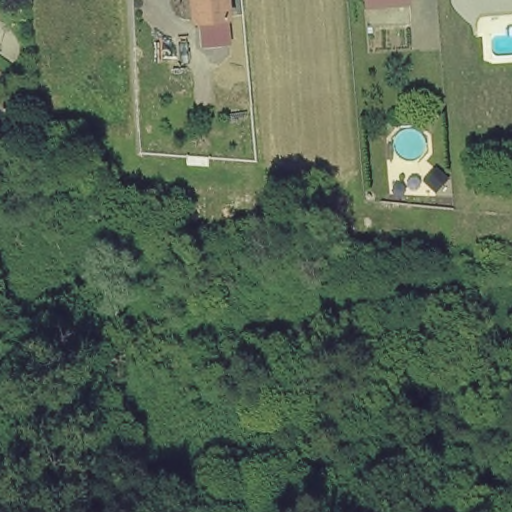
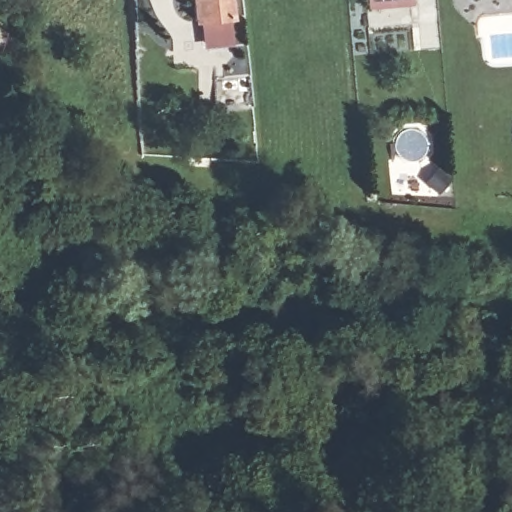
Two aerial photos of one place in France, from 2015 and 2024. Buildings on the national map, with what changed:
unchanged [(227,19),(229,46),(202,49),(200,22),(191,23),(189,0),(229,0),(230,19),(227,19)]
unchanged [(367,0),(413,0),(414,5),(409,5),(368,9),(367,0)]

